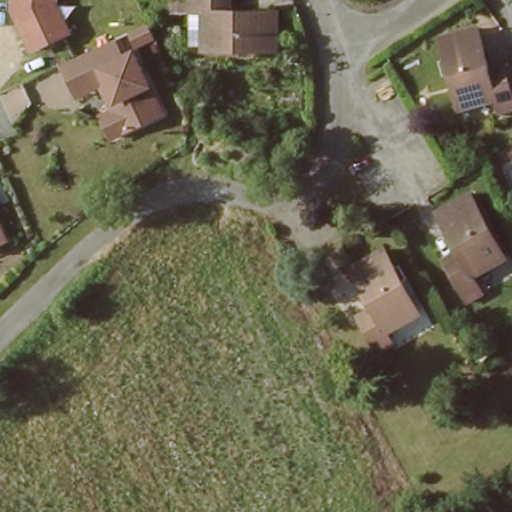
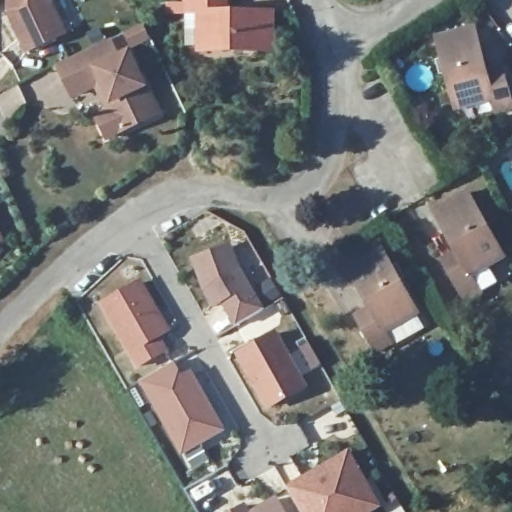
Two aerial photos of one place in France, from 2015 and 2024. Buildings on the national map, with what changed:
unchanged [(69,35),(26,55),(6,12),(7,0),(54,0),(54,5),(69,35)]
unchanged [(276,15),(276,51),(204,51),(203,16),(189,15),(188,0),(226,0),(225,15),(276,15)]
unchanged [(438,36),(476,26),(489,75),(505,72),(512,100),(512,107),(497,110),(493,98),(456,106),(438,36)]
unchanged [(68,95),(62,82),(53,63),(91,44),(104,38),(113,56),(124,51),(153,113),(103,138),(93,116),(98,114),(85,86),(68,95)]
unchanged [(439,205),(470,187),(506,249),(475,269),(480,280),(467,288),(450,256),(462,248),(439,205)]
new [(235,327),(222,305),(214,311),(202,291),(192,259),(233,245),(241,268),(266,309),(235,327)]
unchanged [(371,309),(347,267),(380,246),(415,309),(383,330),(388,340),(374,350),(357,318),(371,309)]
new [(141,281),(172,333),(162,338),(170,352),(138,369),(100,304),(141,281)]
new [(278,330),(310,388),(268,411),(235,354),(278,330)]
new [(140,383),(175,362),(183,376),(192,371),(227,431),(219,437),(183,457),(140,383)]
new [(350,452),(383,508),(375,512),(302,512),(287,487),(350,452)]
new [(248,504),(252,511),(278,497),(286,512),(232,512),(248,504)]

